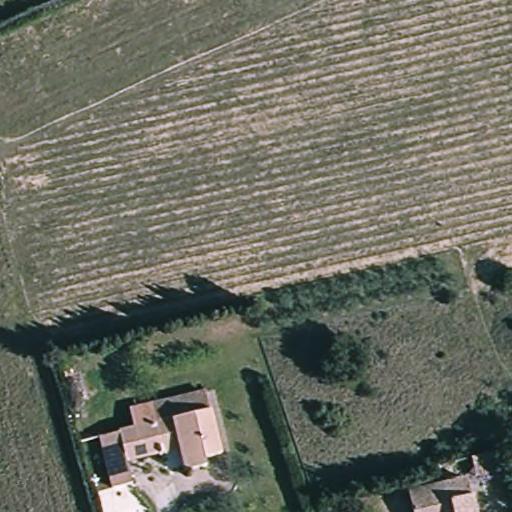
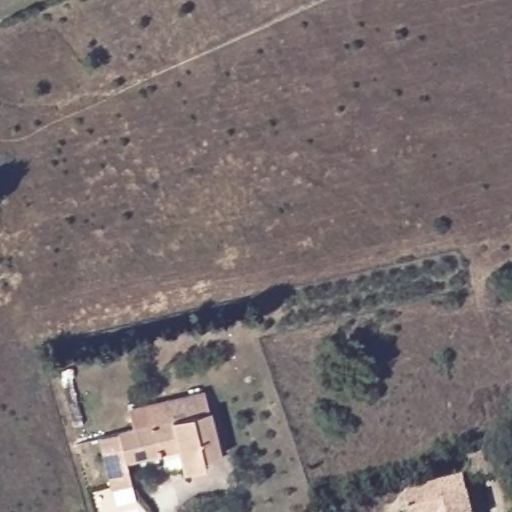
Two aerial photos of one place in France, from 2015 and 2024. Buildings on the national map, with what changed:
unchanged [(132,485),(108,490),(95,430),(203,407),(213,452),(198,455),(200,465),(181,468),(177,447),(177,446),(158,450),(127,456),(132,485)]
unchanged [(405,485),(465,469),(477,512),(412,512),(405,485)]

